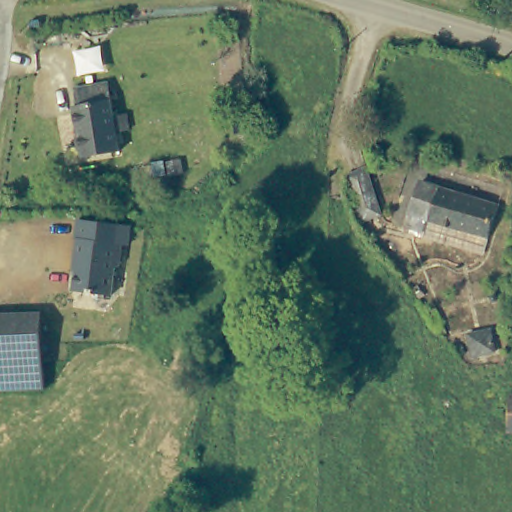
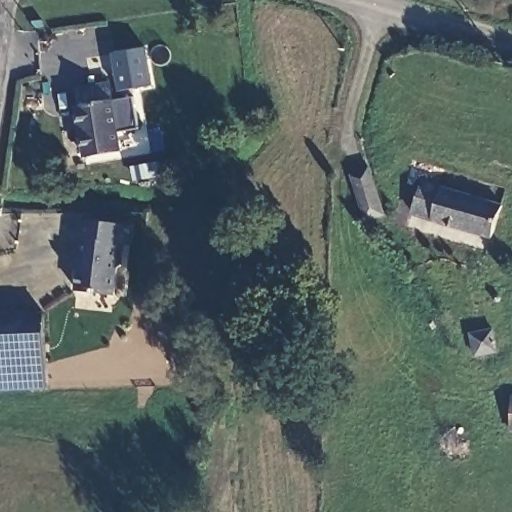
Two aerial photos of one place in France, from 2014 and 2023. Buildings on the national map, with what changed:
new [(118,55),(146,46),(151,88),(124,90),(118,55)]
unchanged [(84,106),(81,89),(113,83),(119,115),(132,114),(134,129),(122,131),(125,150),(88,156),(79,107),(84,106)]
unchanged [(367,170),(382,214),(364,220),(350,175),(367,170)]
unchanged [(405,222),(415,190),(495,215),(485,246),(405,222)]
unchanged [(127,241),(121,240),(119,263),(115,263),(114,291),(76,288),(79,255),(77,255),(78,235),(76,234),(77,215),(129,221),(127,241)]
unchanged [(41,313),(44,384),(0,386),(0,315),(41,313)]
unchanged [(495,350),(473,355),(468,332),(490,327),(495,350)]
unchanged [(512,432),(509,432),(511,394),(512,395),(512,432)]

